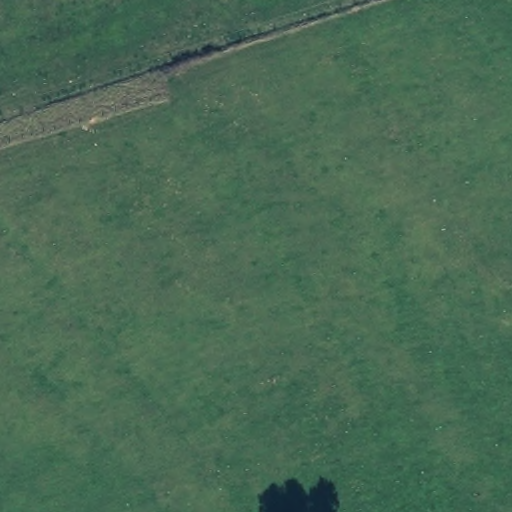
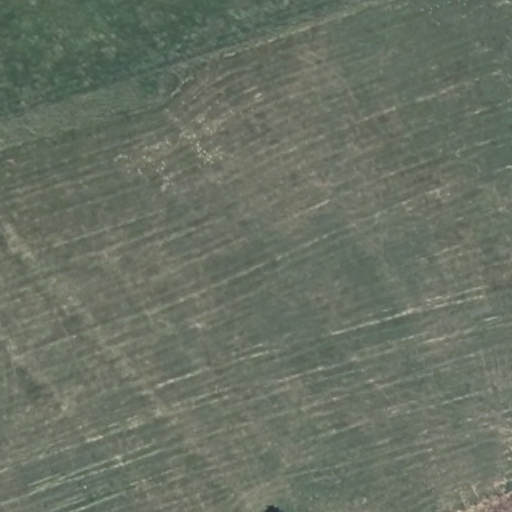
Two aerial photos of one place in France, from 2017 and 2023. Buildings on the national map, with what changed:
[]

